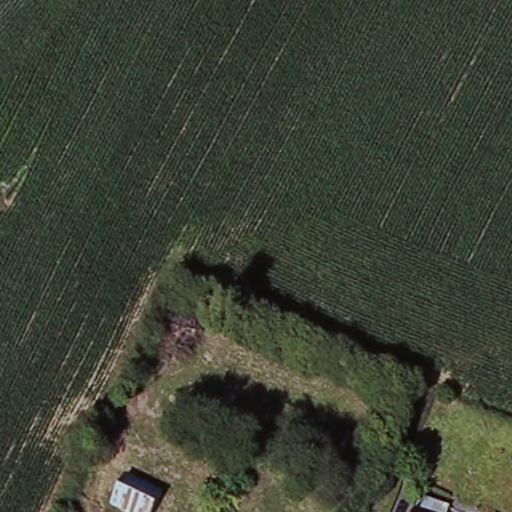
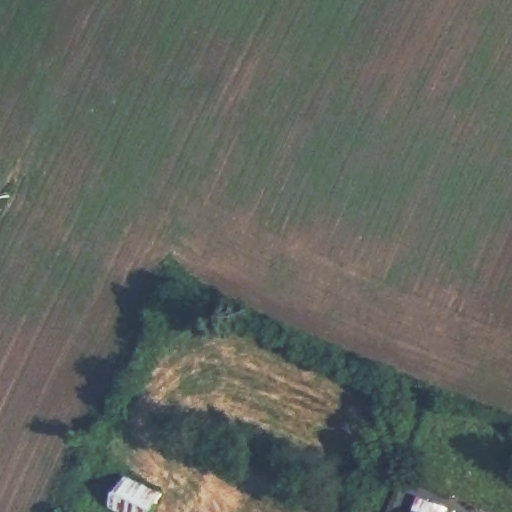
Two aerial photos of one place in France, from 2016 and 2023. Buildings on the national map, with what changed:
unchanged [(161,512),(124,512),(118,509),(133,479),(168,497),(161,512)]
unchanged [(432,512),(414,512),(415,507),(432,512)]

